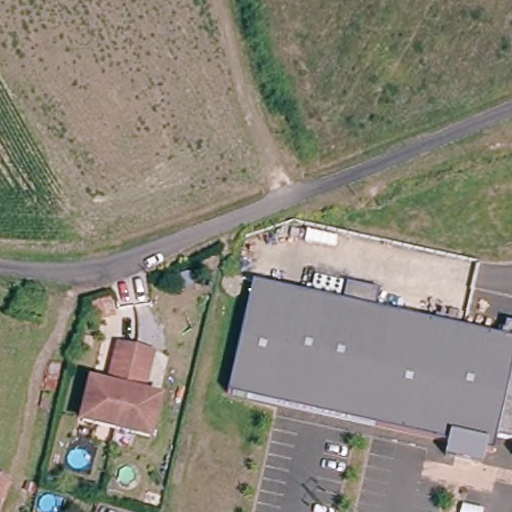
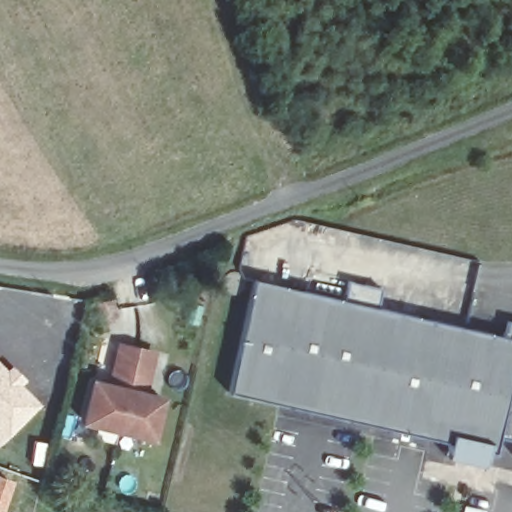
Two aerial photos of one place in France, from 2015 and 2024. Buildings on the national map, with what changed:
unchanged [(498,435),(494,451),(486,448),(483,462),(446,454),(449,440),(228,392),(253,278),(343,298),(348,279),(380,287),(376,306),(503,333),(506,318),(512,320),(512,438),(498,435)]
unchanged [(137,392),(140,378),(118,373),(115,386),(111,385),(119,343),(152,351),(143,392),(137,392)]
new [(11,363),(26,379),(21,384),(40,403),(0,440),(0,361),(6,367),(11,363)]
unchanged [(160,397),(150,436),(84,420),(94,381),(111,385),(115,386),(118,373),(140,378),(137,392),(143,392),(160,397)]
unchanged [(0,473),(6,475),(0,494),(0,473)]

